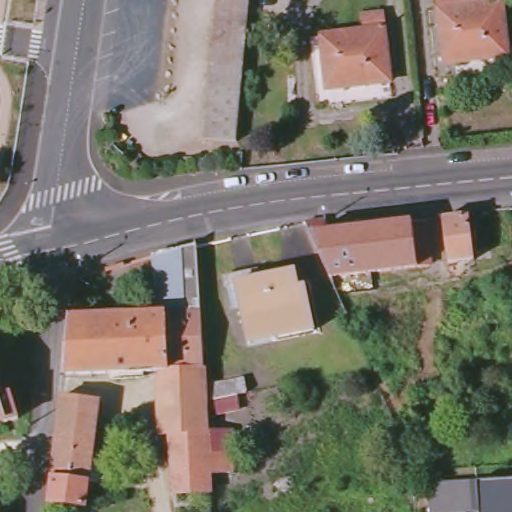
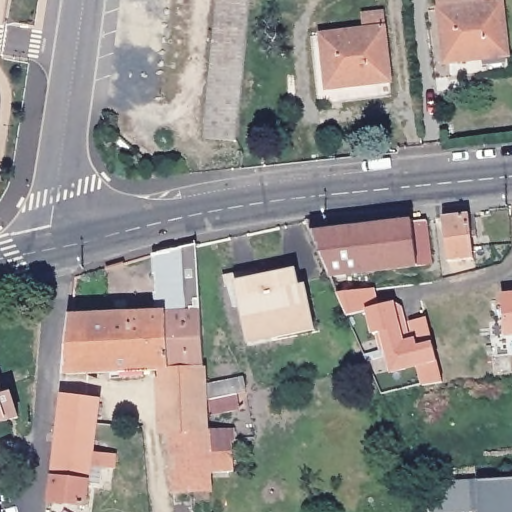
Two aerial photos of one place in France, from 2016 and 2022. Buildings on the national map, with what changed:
unchanged [(236,143),(205,141),(219,0),(252,0),(236,143)]
unchanged [(440,0),(504,0),(511,61),(449,68),(442,16),(440,0)]
unchanged [(362,37),(361,21),(380,19),(388,87),(325,95),(320,42),(362,37)]
unchanged [(470,216),(476,259),(448,263),(443,218),(470,216)]
unchanged [(427,225),(432,270),(330,283),(305,228),(326,226),(327,230),(328,237),(427,225)]
unchanged [(157,316),(153,259),(180,251),(197,248),(205,369),(158,372),(66,377),(72,321),(157,316)]
unchanged [(298,273),(301,290),(307,289),(315,332),(248,343),(238,283),(298,273)]
new [(381,306),(395,303),(402,308),(406,323),(427,318),(442,385),(421,388),(417,368),(391,375),(385,351),(380,352),(376,334),(372,335),(367,314),(346,317),(337,294),(375,290),(381,306)]
new [(512,294),(512,336),(506,337),(502,295),(512,294)]
unchanged [(158,372),(205,369),(209,431),(162,433),(158,372)]
unchanged [(94,454),(132,459),(131,472),(93,467),(87,507),(51,503),(63,397),(100,401),(94,454)]
unchanged [(0,425),(0,403),(15,398),(22,422),(7,426),(6,423),(0,425)]
unchanged [(209,431),(209,435),(235,435),(235,473),(213,474),(215,496),(172,498),(168,440),(162,439),(162,433),(209,431)]
unchanged [(512,512),(482,512),(482,510),(480,479),(512,477),(512,512)]
unchanged [(482,510),(463,511),(448,512),(432,512),(430,482),(480,479),(482,510)]
demolished [(482,512),(463,512),(463,511),(482,510),(482,512)]

